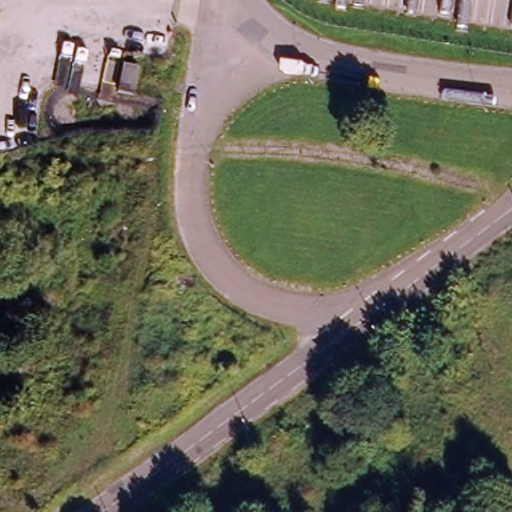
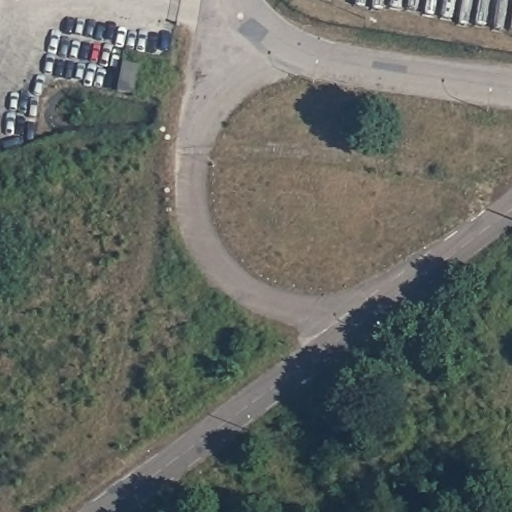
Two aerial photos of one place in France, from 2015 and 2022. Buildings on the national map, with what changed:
unchanged [(125,69),(143,74),(138,96),(119,93),(125,69)]

